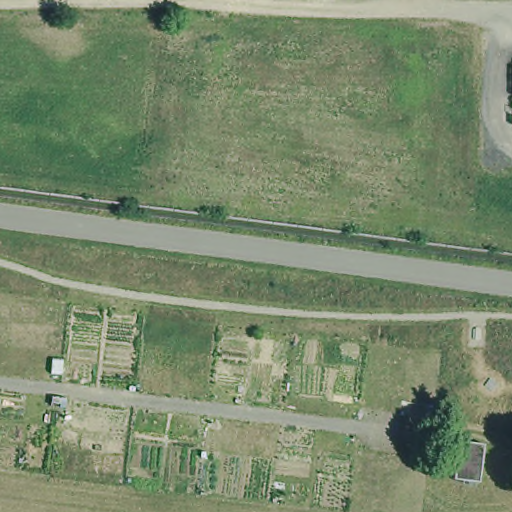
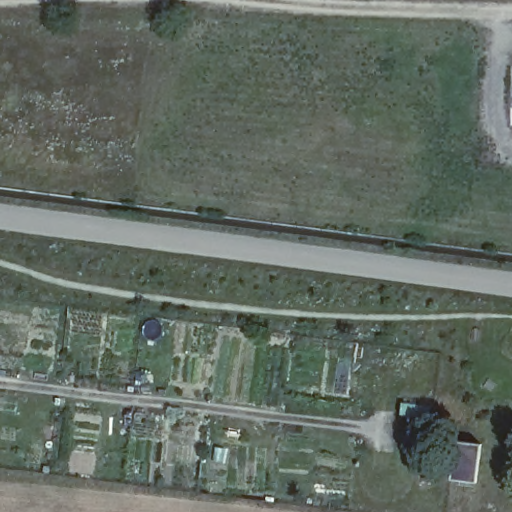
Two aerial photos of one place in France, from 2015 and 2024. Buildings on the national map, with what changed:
unchanged [(506,117),(506,100),(512,100),(512,117),(506,117)]
unchanged [(483,443),(477,483),(452,480),(457,440),(483,443)]

